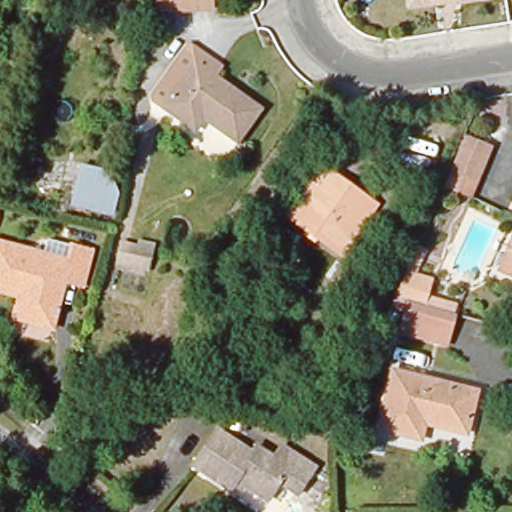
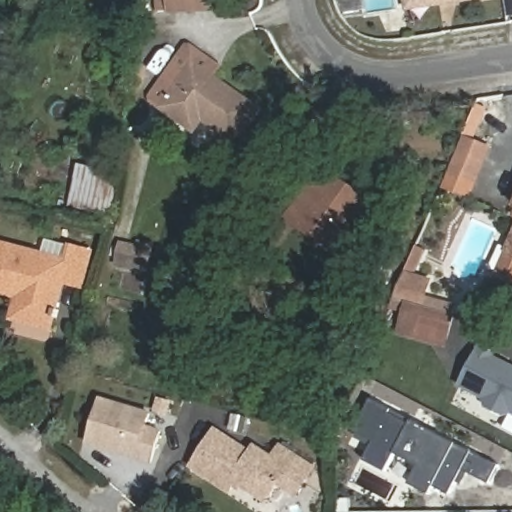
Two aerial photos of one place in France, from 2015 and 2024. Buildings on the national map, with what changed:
unchanged [(170,0),(211,0),(212,8),(171,10),(170,0)]
unchanged [(402,10),(401,0),(486,0),(462,3),(448,4),(402,10)]
unchanged [(237,142),(206,119),(197,131),(147,94),(187,38),(213,57),(219,61),(211,71),(262,107),(237,142)]
unchanged [(466,135),(493,147),(471,200),(444,187),(466,135)]
unchanged [(305,228),(290,217),(305,198),(326,167),(376,204),(349,242),(341,253),(305,228)]
unchanged [(111,172),(106,211),(79,208),(84,169),(111,172)]
unchanged [(122,237),(155,244),(148,274),(115,265),(122,237)]
unchanged [(496,271),(506,250),(512,238),(512,279),(496,271)]
unchanged [(51,311),(48,321),(20,314),(11,312),(16,291),(0,288),(0,239),(65,254),(69,240),(86,244),(77,278),(60,275),(53,302),(57,304),(54,312),(51,311)]
unchanged [(417,338),(400,334),(406,312),(389,308),(392,302),(403,275),(413,250),(423,254),(413,278),(430,283),(426,298),(456,306),(452,317),(446,344),(417,338)]
new [(497,351),(494,355),(512,364),(512,411),(505,414),(490,407),(487,398),(461,385),(482,344),(497,351)]
demolished [(393,372),(477,392),(466,435),(425,424),(420,441),(377,431),(393,372)]
new [(100,396),(148,412),(144,426),(159,430),(149,460),(86,439),(100,396)]
new [(372,397),(414,419),(501,465),(491,484),(470,474),(464,485),(458,481),(452,495),(436,486),(431,495),(411,484),(420,466),(397,454),(387,471),(365,460),(375,441),(356,432),(372,397)]
unchanged [(280,484),(268,502),(236,482),(231,489),(196,466),(219,431),(255,453),(258,448),(276,459),(283,449),(316,469),(297,495),(280,484)]

